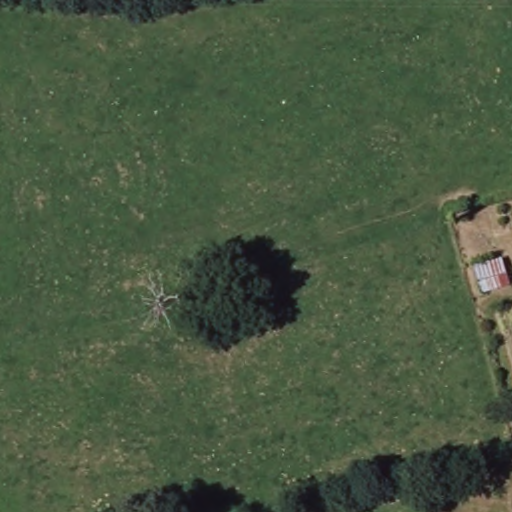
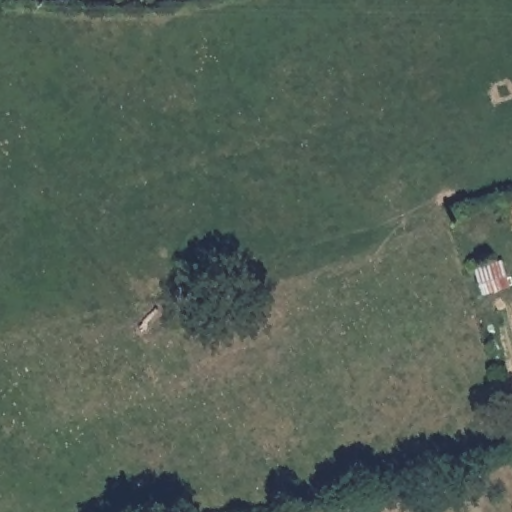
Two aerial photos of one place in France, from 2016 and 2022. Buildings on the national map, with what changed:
unchanged [(497,257),(503,282),(478,288),(471,263),(497,257)]

